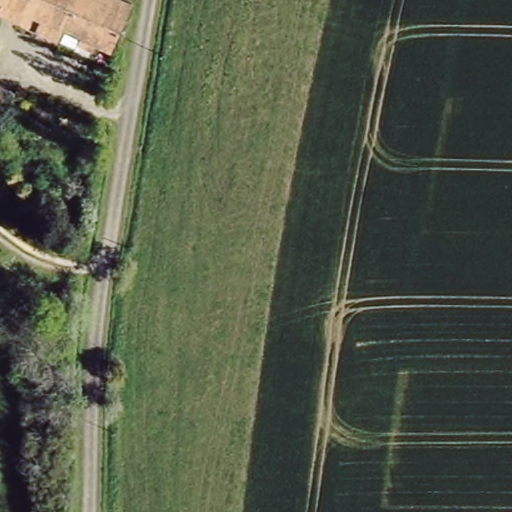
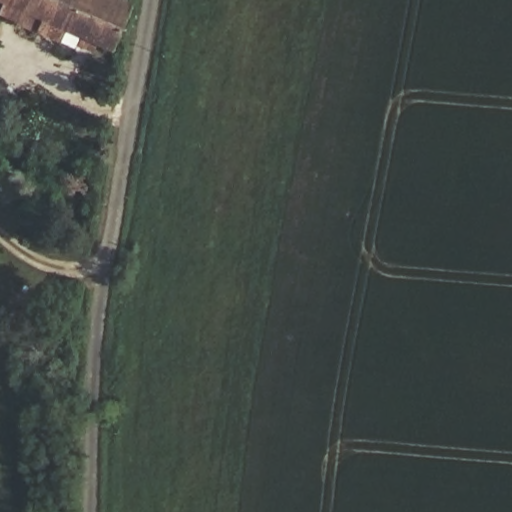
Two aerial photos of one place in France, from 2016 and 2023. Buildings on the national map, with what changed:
unchanged [(75,29),(66,44),(0,9),(0,0),(123,0),(130,4),(111,46),(75,29)]

